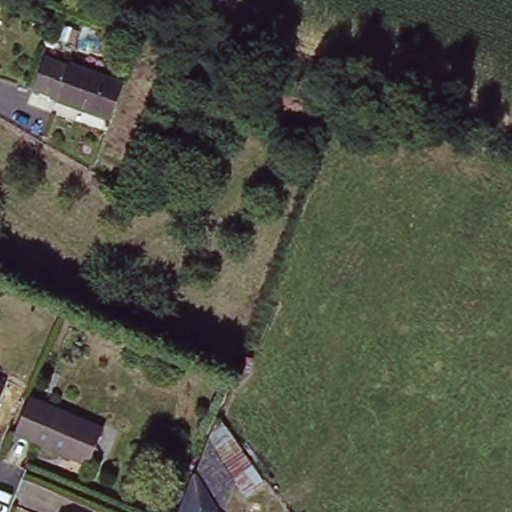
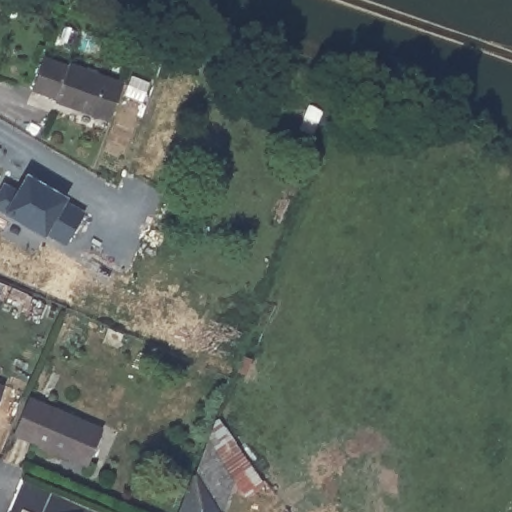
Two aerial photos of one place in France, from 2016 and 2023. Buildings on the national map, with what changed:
unchanged [(65,26),(79,30),(75,43),(60,39),(65,26)]
unchanged [(40,56),(64,65),(66,62),(120,82),(106,120),(53,101),(53,98),(28,90),(40,56)]
new [(86,218),(58,253),(0,208),(0,196),(23,167),(86,218)]
unchanged [(98,430),(83,464),(10,434),(25,399),(98,430)]
unchanged [(176,512),(193,468),(215,416),(239,449),(223,467),(234,486),(223,512),(176,512)]

